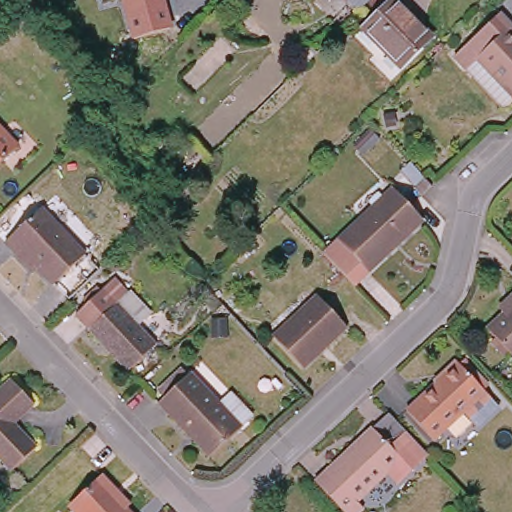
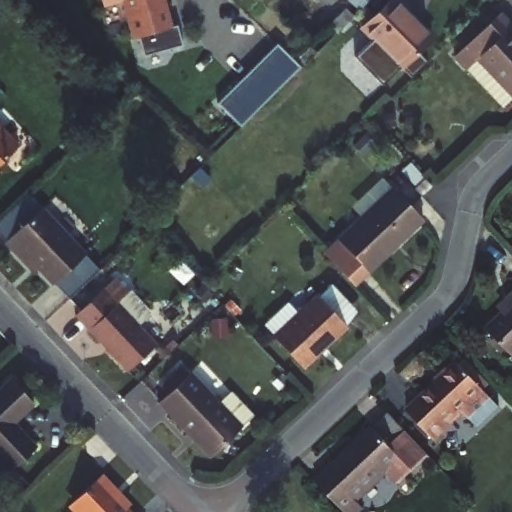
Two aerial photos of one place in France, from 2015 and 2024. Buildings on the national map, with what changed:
unchanged [(102,0),(116,0),(103,3),(102,0)]
unchanged [(130,39),(121,0),(165,0),(172,29),(130,39)]
unchanged [(346,0),(354,0),(350,4),(346,0)]
unchanged [(350,4),(354,0),(378,0),(363,14),(350,4)]
unchanged [(399,0),(401,0),(413,13),(407,18),(434,44),(403,74),(365,34),(399,0)]
unchanged [(476,72),(465,60),(510,19),(512,20),(512,110),(476,72)]
new [(397,68),(379,83),(358,58),(373,43),(397,68)]
new [(217,103),(276,45),(300,68),(241,126),(217,103)]
unchanged [(0,160),(0,129),(15,145),(0,160)]
unchanged [(199,165),(210,177),(202,184),(191,173),(199,165)]
unchanged [(432,186),(421,197),(414,189),(425,179),(432,186)]
unchanged [(337,257),(330,249),(398,183),(429,215),(360,281),(337,257)]
unchanged [(33,272),(8,247),(43,213),(90,259),(58,289),(42,272),(37,277),(33,272)]
unchanged [(75,317),(115,279),(150,315),(140,326),(158,344),(130,372),(75,317)]
unchanged [(183,290),(195,292),(194,303),(182,301),(183,290)]
unchanged [(486,329),(505,311),(500,305),(512,294),(512,356),(486,329)]
unchanged [(303,368),(273,335),(315,295),(345,327),(325,347),(323,345),(318,349),(320,351),(303,368)]
unchanged [(461,364),(488,392),(438,441),(411,412),(461,364)]
unchanged [(242,431),(210,461),(158,408),(190,378),(242,431)]
unchanged [(30,404),(8,424),(30,448),(7,469),(0,462),(0,388),(7,381),(30,404)]
unchanged [(367,424),(384,442),(400,426),(409,435),(423,450),(393,479),(382,468),(350,498),(357,504),(349,512),(342,512),(310,479),(367,424)]
unchanged [(72,509),(72,502),(101,474),(130,505),(126,508),(130,512),(75,512),(72,509)]

